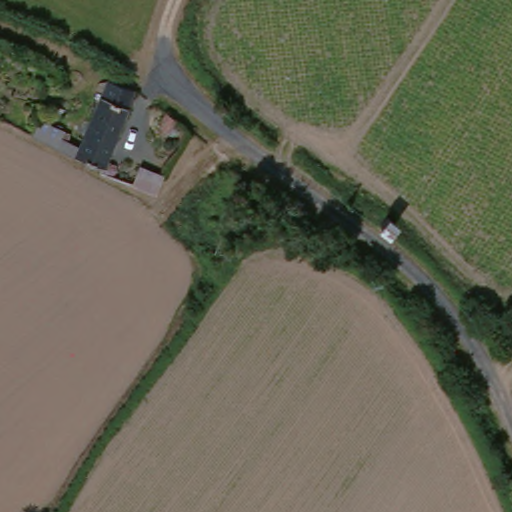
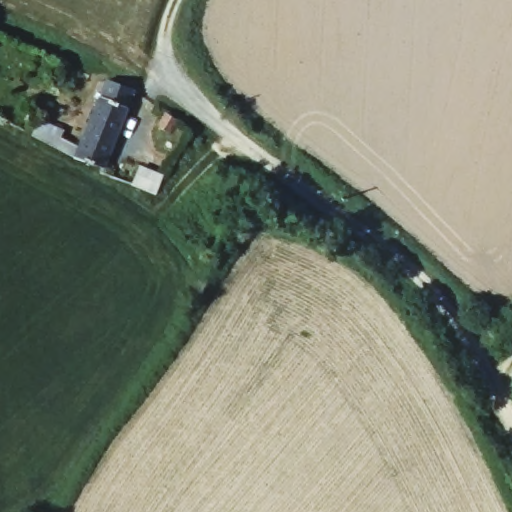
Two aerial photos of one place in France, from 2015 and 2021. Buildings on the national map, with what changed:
unchanged [(101,80),(128,90),(99,164),(74,153),(101,80)]
unchanged [(166,118),(174,126),(167,140),(149,131),(158,114),(166,118)]
unchanged [(136,175),(157,184),(151,199),(129,191),(136,175)]
unchanged [(173,237),(185,215),(217,229),(206,250),(173,237)]

